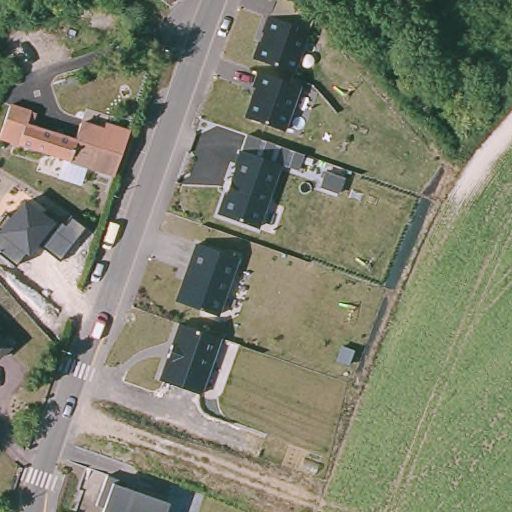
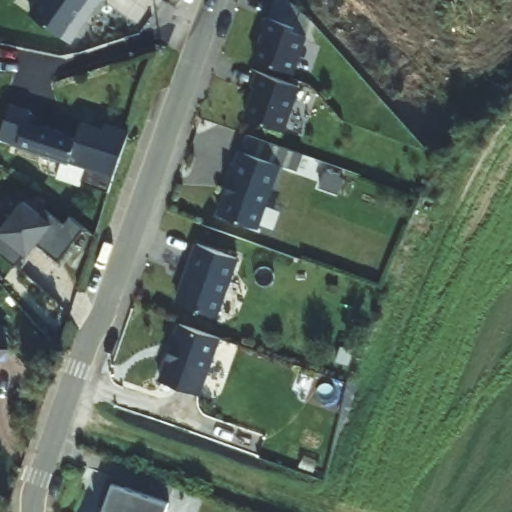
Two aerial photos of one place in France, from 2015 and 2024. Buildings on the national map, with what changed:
new [(31,14),(41,0),(100,0),(82,25),(70,42),(31,14)]
demolished [(155,0),(175,0),(169,11),(155,0)]
unchanged [(296,79),(252,65),(274,0),(301,0),(318,6),(296,79)]
unchanged [(289,131),(244,117),(257,74),(302,88),(289,131)]
unchanged [(27,114),(23,129),(71,143),(77,125),(100,134),(104,126),(124,133),(109,179),(0,145),(0,137),(9,109),(27,114)]
unchanged [(300,174),(280,168),(262,227),(220,211),(245,134),(306,153),(300,174)]
unchanged [(11,214),(27,194),(65,225),(72,216),(86,228),(57,262),(37,242),(18,264),(0,250),(0,224),(7,213),(11,214)]
unchanged [(220,317),(177,302),(195,244),(240,259),(220,317)]
unchanged [(204,393),(159,378),(177,324),(223,339),(204,393)]
unchanged [(0,352),(0,333),(10,344),(0,352)]
unchanged [(169,504),(167,512),(101,512),(102,509),(95,507),(106,478),(169,504)]

